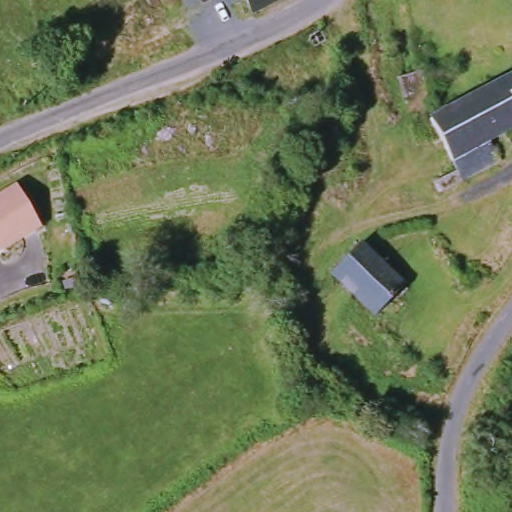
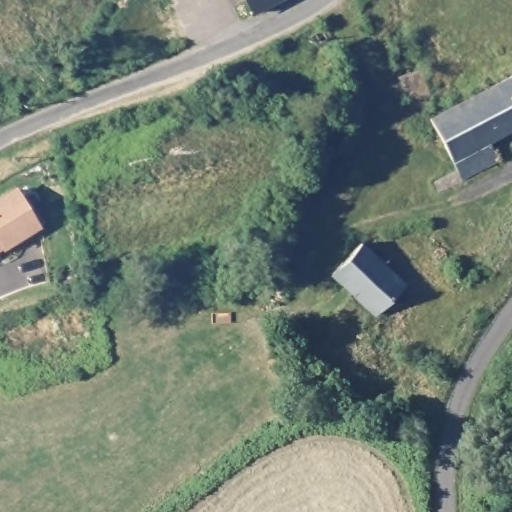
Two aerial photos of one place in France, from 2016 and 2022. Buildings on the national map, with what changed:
unchanged [(254,15),(247,0),(287,0),(254,15)]
unchanged [(445,193),(437,179),(460,167),(434,119),(512,76),(512,130),(491,141),(502,162),(445,193)]
unchanged [(20,200),(25,197),(42,225),(37,228),(37,229),(2,250),(0,251),(0,200),(15,191),(20,200)]
unchanged [(351,295),(335,282),(364,250),(405,287),(377,318),(351,295)]

